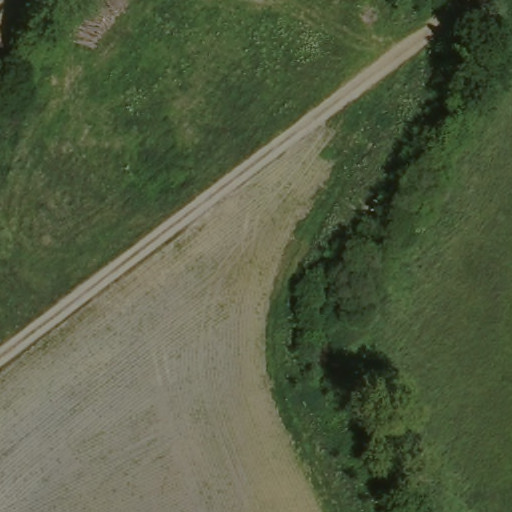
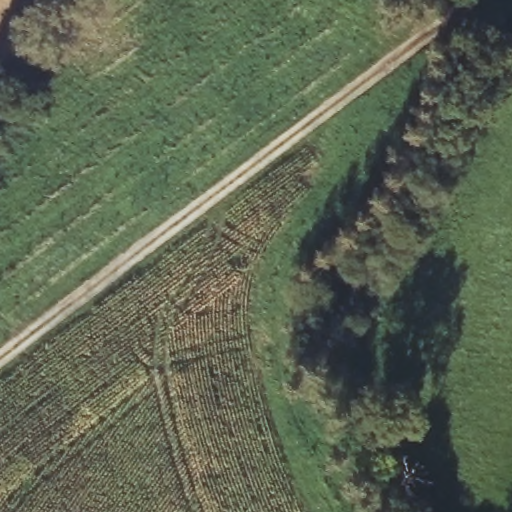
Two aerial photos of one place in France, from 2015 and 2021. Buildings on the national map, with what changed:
[]

